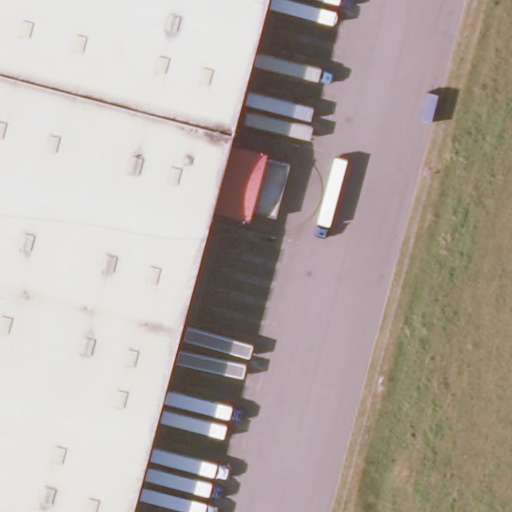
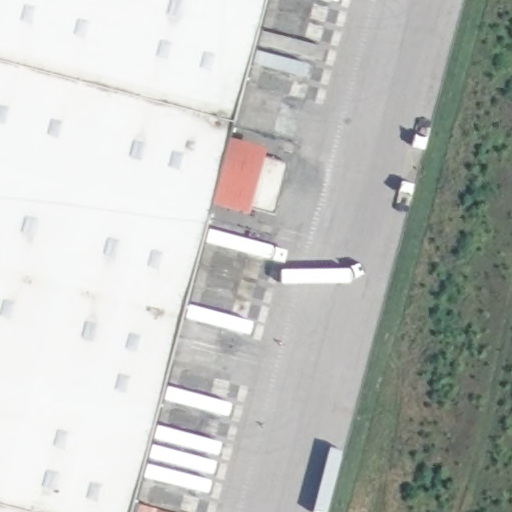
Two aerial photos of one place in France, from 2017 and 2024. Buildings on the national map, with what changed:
unchanged [(150,512),(0,512),(0,0),(281,0),(245,141),(281,151),(279,157),(303,163),(290,215),(266,209),(265,215),(228,206),(150,512)]

